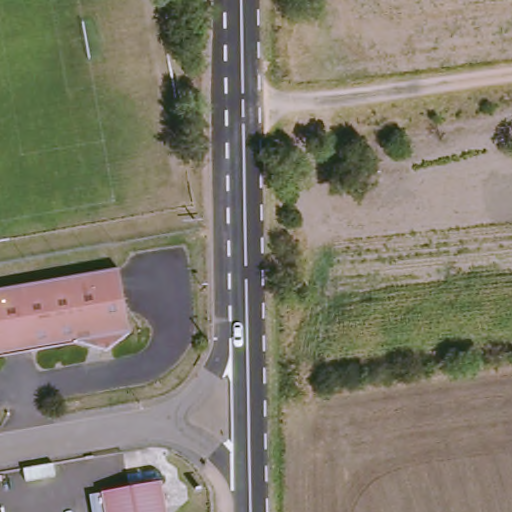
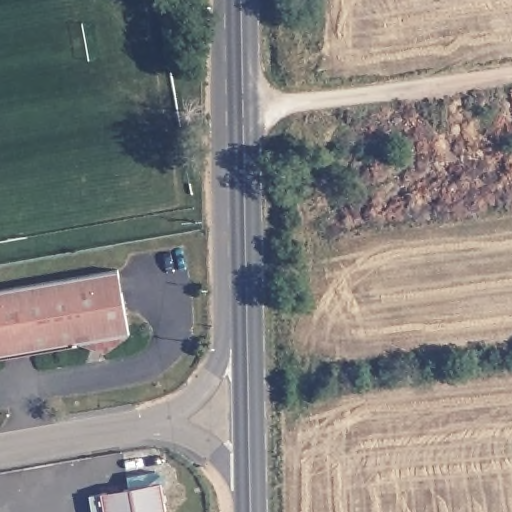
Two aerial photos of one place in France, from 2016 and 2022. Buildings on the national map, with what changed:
unchanged [(106,363),(80,346),(0,361),(0,292),(116,271),(127,334),(106,363)]
unchanged [(157,479),(162,512),(103,512),(99,487),(157,479)]

